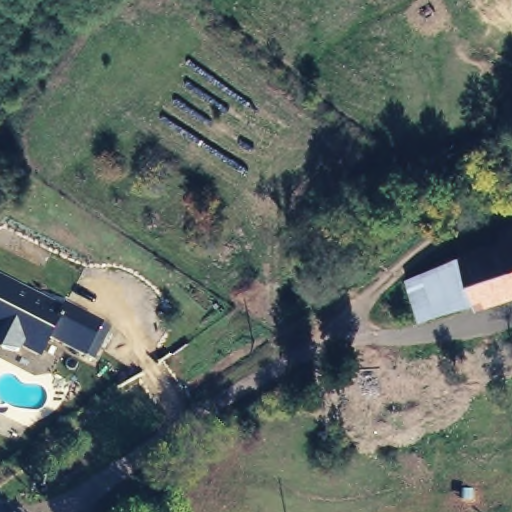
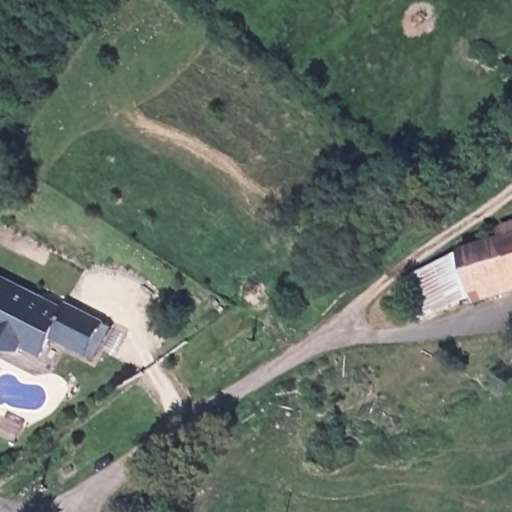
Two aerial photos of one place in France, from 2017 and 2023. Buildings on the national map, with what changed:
unchanged [(512,226),(512,290),(469,303),(455,304),(439,251),(512,226)]
unchanged [(52,345),(41,363),(0,342),(0,276),(64,308),(67,306),(103,326),(87,361),(52,345)]

